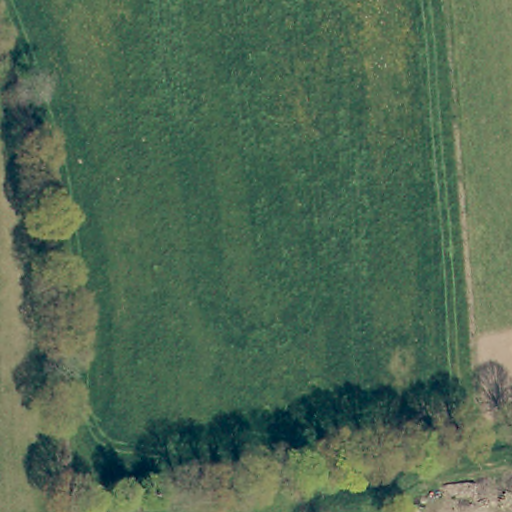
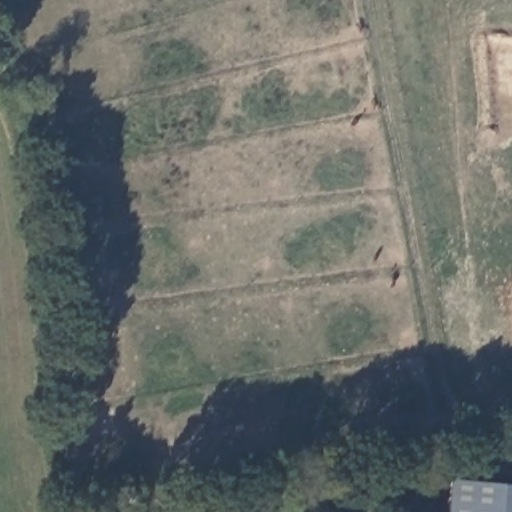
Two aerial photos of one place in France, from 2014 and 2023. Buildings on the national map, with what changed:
new [(447,478),(512,485),(512,512),(446,512),(447,478)]

